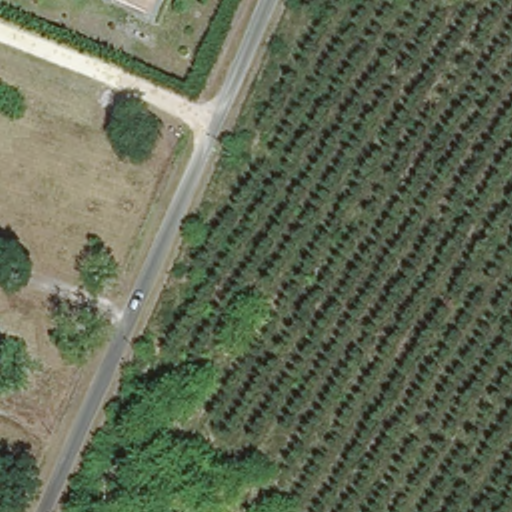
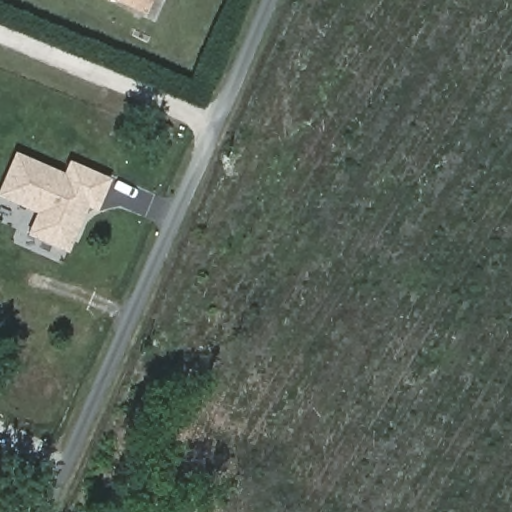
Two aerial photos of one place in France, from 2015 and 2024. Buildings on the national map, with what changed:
demolished [(117,0),(153,0),(147,13),(117,0)]
unchanged [(133,0),(142,0),(140,4),(133,0)]
new [(14,150),(62,171),(68,159),(111,178),(97,209),(87,205),(67,253),(25,234),(34,212),(0,197),(0,182),(14,150)]

